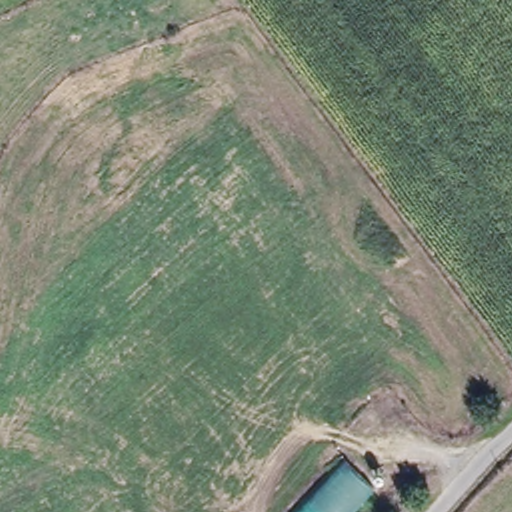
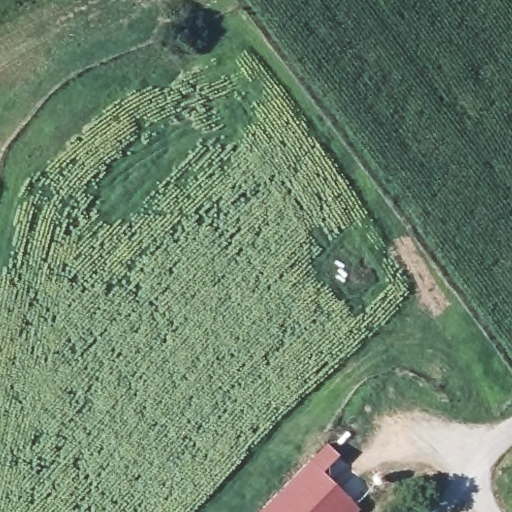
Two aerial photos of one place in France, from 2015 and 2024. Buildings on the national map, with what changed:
new [(340,457),(324,473),(361,510),(359,512),(260,512),(326,443),(340,457)]
demolished [(363,512),(300,512),(349,458),(382,492),(363,512)]

